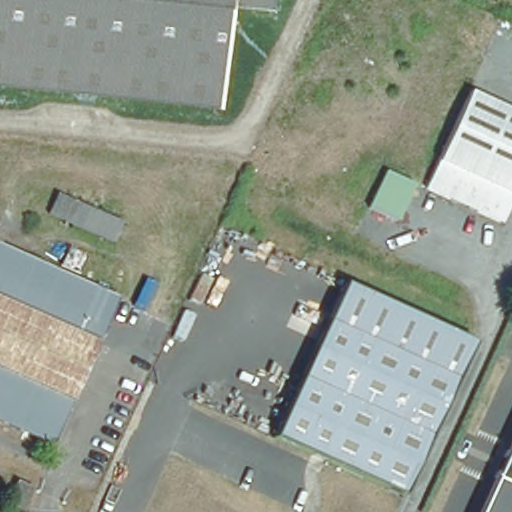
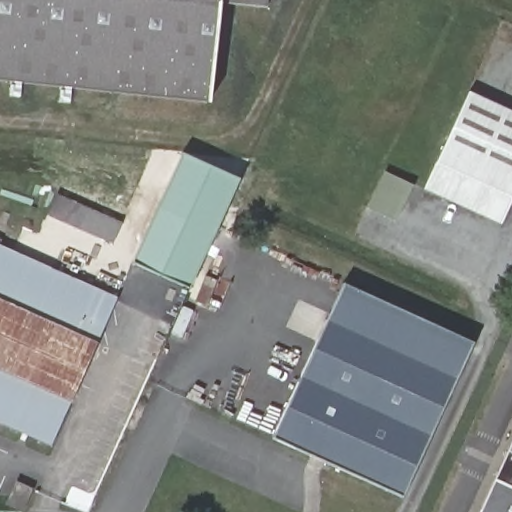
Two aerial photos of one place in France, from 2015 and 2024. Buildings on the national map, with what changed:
unchanged [(204,97),(0,76),(0,0),(215,0),(204,97)]
unchanged [(270,2),(249,0),(270,0),(270,2)]
unchanged [(512,110),(512,199),(501,222),(422,188),(465,89),(512,110)]
new [(182,153),(240,178),(188,287),(133,263),(182,153)]
new [(396,222),(367,208),(385,171),(414,186),(396,222)]
unchanged [(112,249),(44,223),(54,194),(124,220),(112,249)]
unchanged [(117,301),(50,447),(0,424),(0,249),(117,301)]
unchanged [(340,275),(467,335),(395,489),(267,429),(340,275)]
unchanged [(512,512),(478,512),(512,440),(512,512)]
unchanged [(22,512),(5,512),(3,511),(12,483),(30,489),(22,512)]

